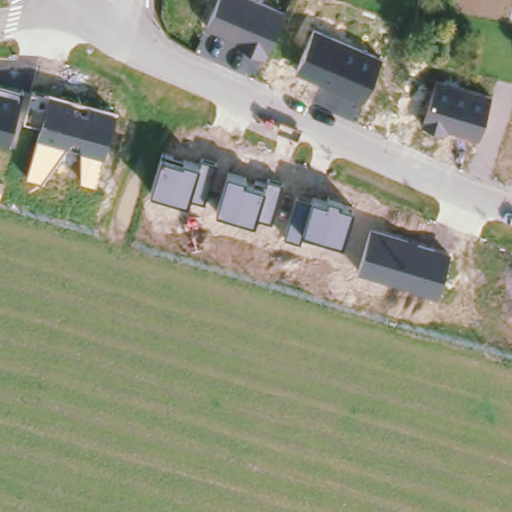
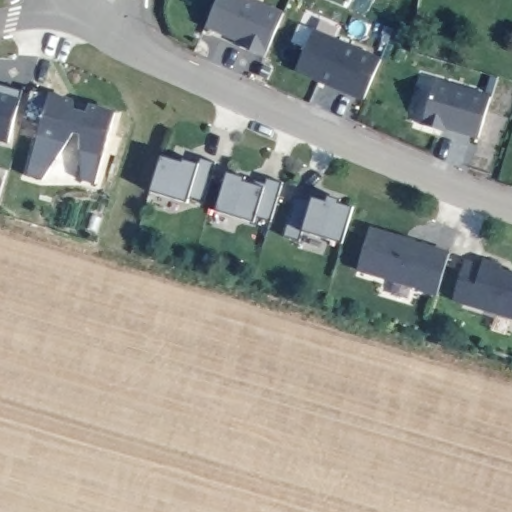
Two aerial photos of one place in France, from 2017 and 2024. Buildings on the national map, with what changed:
unchanged [(285,13),(266,58),(235,46),(237,41),(205,27),(217,0),(256,0),(285,13)]
unchanged [(382,58),(364,101),(295,71),(314,30),(382,58)]
unchanged [(479,139),(447,129),(445,133),(422,124),(435,80),(490,95),(479,139)]
unchanged [(10,145),(0,142),(0,85),(22,92),(10,145)]
unchanged [(104,156),(96,185),(81,181),(80,149),(80,139),(73,137),(67,144),(42,181),(27,176),(37,135),(42,116),(25,119),(32,91),(115,110),(104,156)]
unchanged [(162,155),(184,162),(185,160),(197,164),(202,159),(215,163),(204,201),(190,196),(189,203),(152,191),(162,155)]
unchanged [(227,172),(245,177),(244,181),(252,183),(255,181),(267,184),(268,179),(282,183),(272,222),(257,217),(255,222),(217,210),(227,172)]
unchanged [(304,230),(300,241),(285,236),(297,196),(312,198),(327,201),(329,197),(341,200),(340,204),(353,209),(342,243),(304,230)]
unchanged [(437,297),(357,272),(370,226),(450,251),(437,297)]
new [(464,264),(480,269),(482,263),(501,269),(499,276),(510,279),(511,277),(512,277),(512,322),(452,306),(464,264)]

